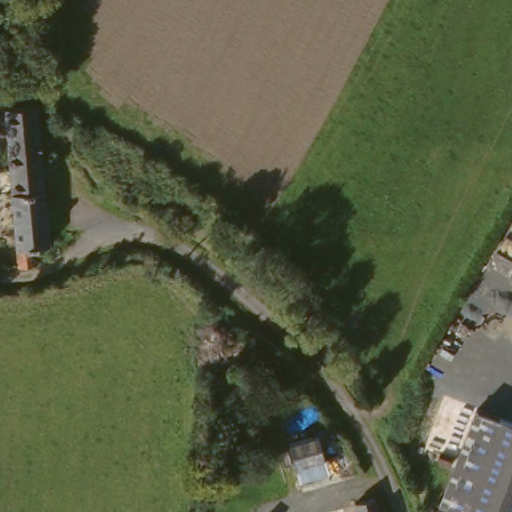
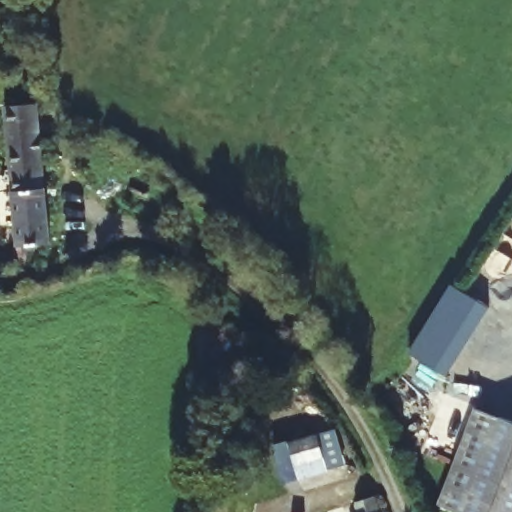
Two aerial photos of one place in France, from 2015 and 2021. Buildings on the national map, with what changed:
unchanged [(0,54),(0,20),(7,21),(2,54),(0,54)]
unchanged [(33,99),(49,239),(36,239),(36,259),(20,261),(0,107),(0,103),(26,99),(33,99)]
new [(453,285),(491,309),(447,378),(410,353),(453,285)]
unchanged [(512,512),(440,512),(437,511),(472,418),(512,433),(512,512)]
unchanged [(312,438),(320,462),(290,472),(282,446),(312,438)]
unchanged [(378,512),(360,512),(377,507),(378,512)]

